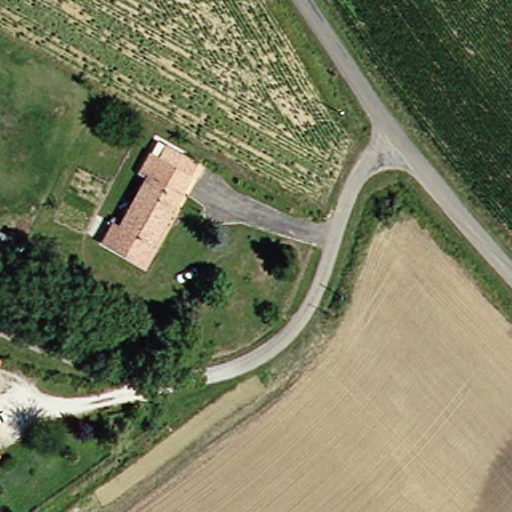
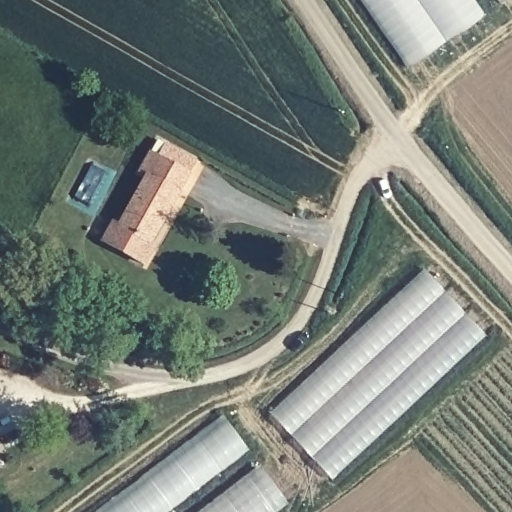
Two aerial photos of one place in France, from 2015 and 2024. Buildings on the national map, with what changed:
new [(410,68),(363,0),(475,0),(485,15),(410,68)]
new [(496,0),(503,0),(498,3),(496,0)]
unchanged [(145,269),(99,249),(109,226),(116,228),(141,176),(136,173),(149,151),(159,155),(166,142),(196,159),(149,248),(154,251),(145,269)]
new [(270,413),(423,272),(485,336),(332,480),(270,413)]
unchanged [(0,368),(0,365),(1,366),(0,368)]
new [(224,417),(248,451),(168,512),(98,512),(224,417)]
new [(261,468),(287,506),(278,512),(204,512),(261,468)]

